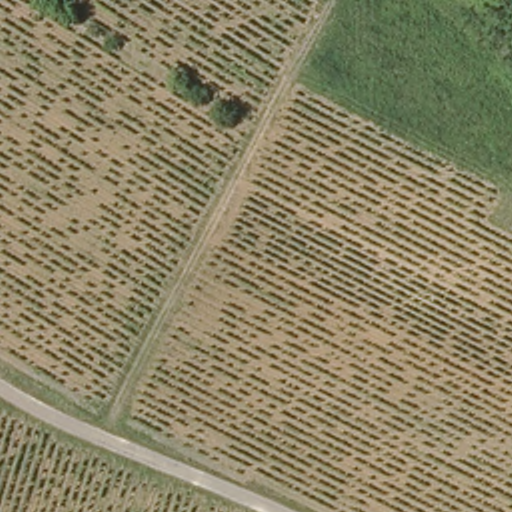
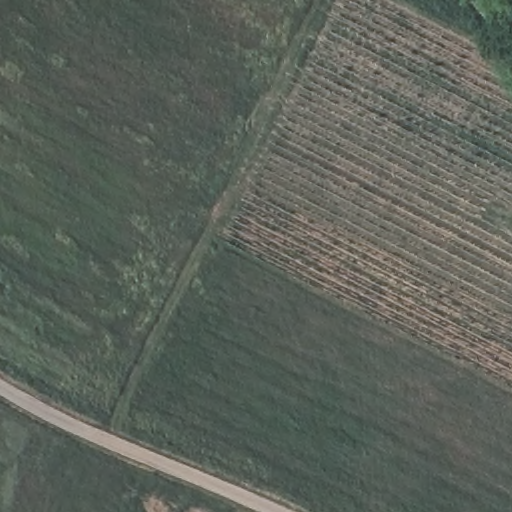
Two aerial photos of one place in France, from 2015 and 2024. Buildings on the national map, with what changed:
[]

